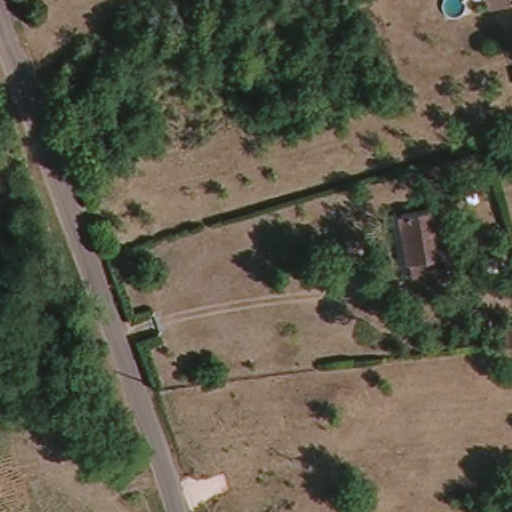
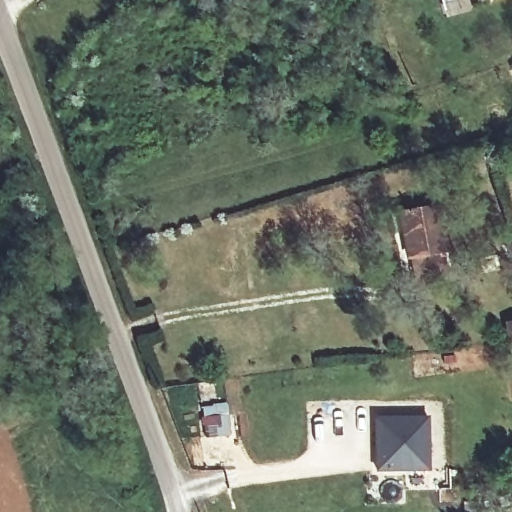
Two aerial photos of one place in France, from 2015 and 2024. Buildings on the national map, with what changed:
unchanged [(412,268),(409,254),(407,255),(398,206),(434,200),(442,249),(440,249),(442,263),(412,268)]
unchanged [(512,322),(512,342),(507,343),(504,323),(512,322)]
new [(376,417),(428,417),(428,470),(376,470),(376,417)]

